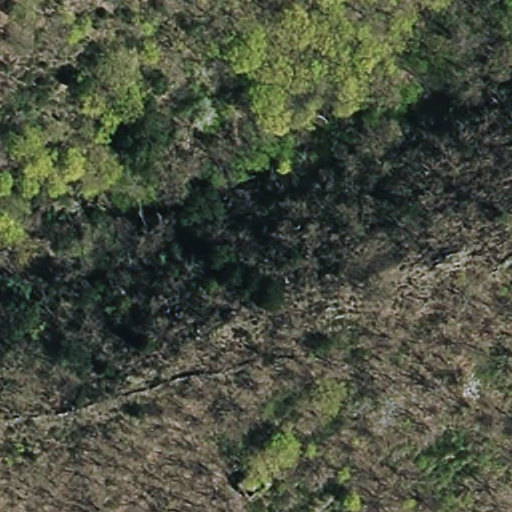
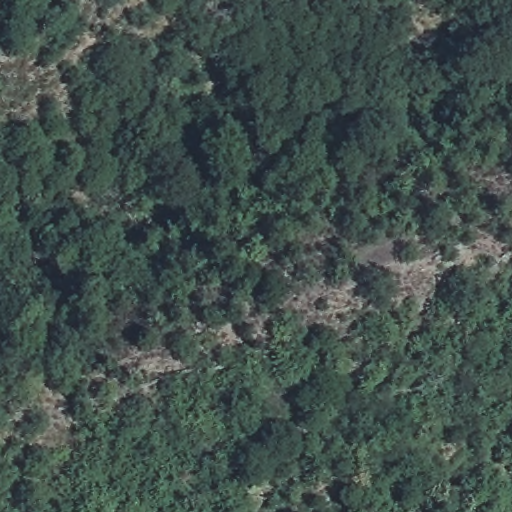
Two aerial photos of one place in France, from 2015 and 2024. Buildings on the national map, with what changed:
[]

